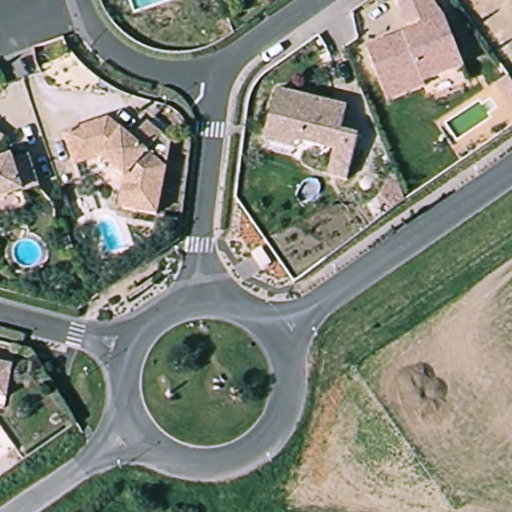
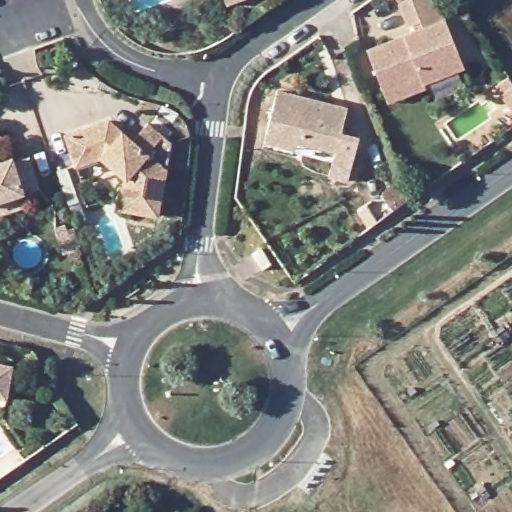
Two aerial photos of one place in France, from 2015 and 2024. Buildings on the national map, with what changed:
unchanged [(389,102),(384,91),(369,49),(424,28),(422,21),(410,26),(401,4),(406,0),(434,0),(449,20),(467,67),(445,75),(425,83),(427,88),(389,102)]
unchanged [(362,135),(352,178),(333,173),(338,150),(266,133),(277,88),(336,103),(349,106),(347,114),(343,129),(362,135)]
unchanged [(134,141),(148,126),(171,144),(161,215),(124,211),(127,179),(103,159),(77,165),(67,135),(111,120),(134,141)]
unchanged [(15,162),(17,169),(35,163),(44,190),(0,204),(0,135),(7,138),(0,166),(15,162)]
unchanged [(5,399),(0,397),(0,358),(15,363),(5,399)]

